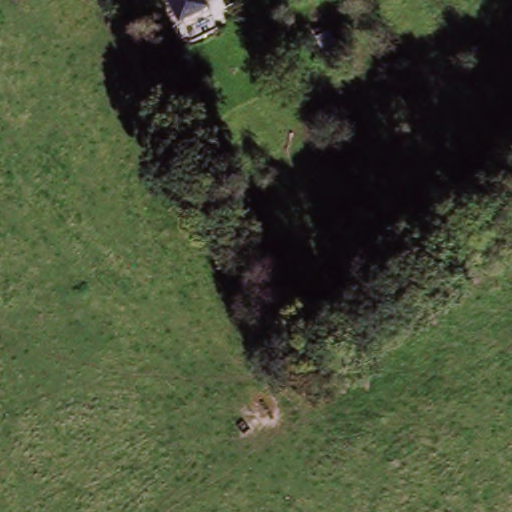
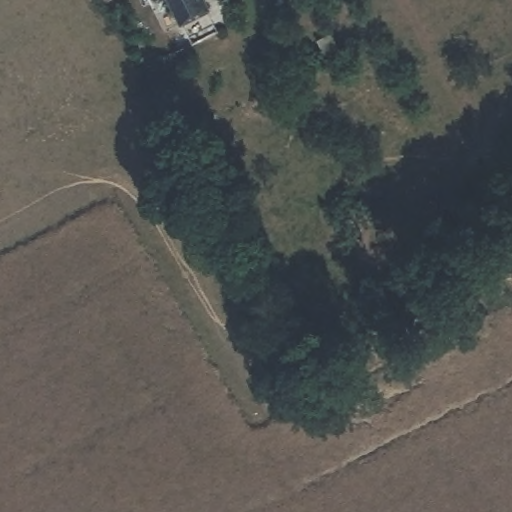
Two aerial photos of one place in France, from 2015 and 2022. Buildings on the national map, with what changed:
unchanged [(176,10),(171,0),(196,0),(176,10)]
unchanged [(512,122),(512,146),(502,130),(512,122)]

